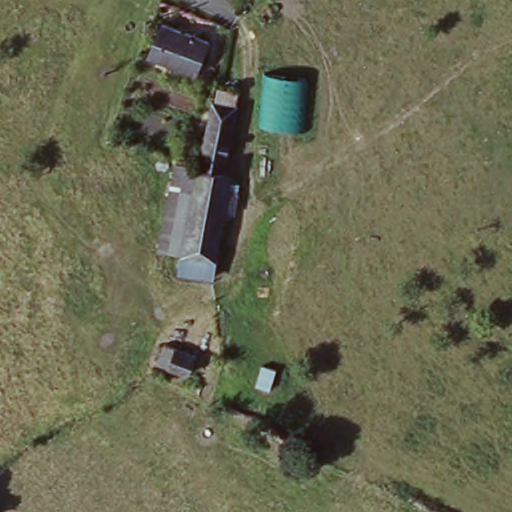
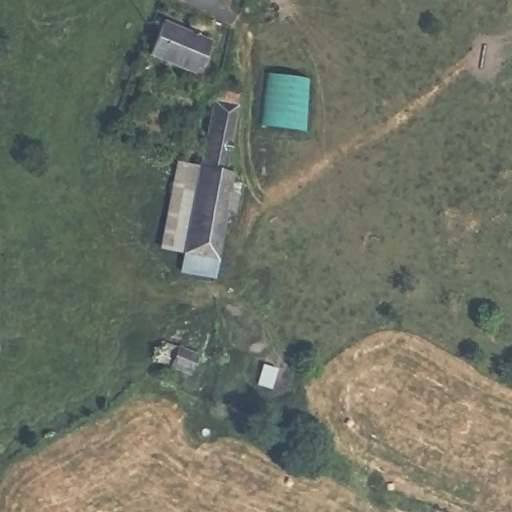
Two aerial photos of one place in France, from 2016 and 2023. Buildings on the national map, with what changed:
unchanged [(206,45),(192,78),(146,59),(160,25),(206,45)]
unchanged [(265,79),(304,79),(302,133),(263,130),(265,79)]
unchanged [(176,275),(179,258),(154,252),(173,163),(196,169),(207,110),(219,113),(233,116),(221,175),(231,177),(228,190),(235,191),(235,194),(229,222),(222,222),(212,263),(207,283),(176,275)]
unchanged [(186,358),(176,376),(145,359),(154,343),(186,358)]

